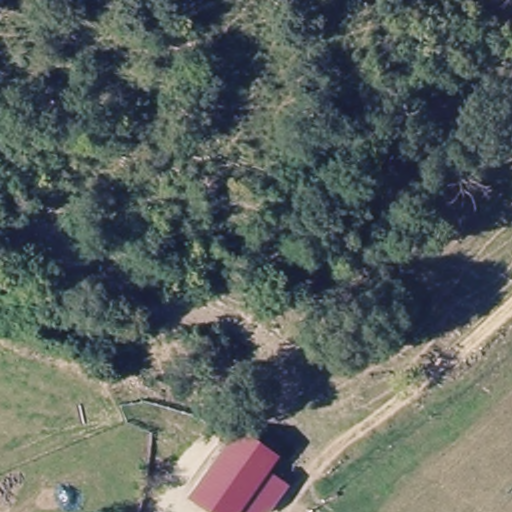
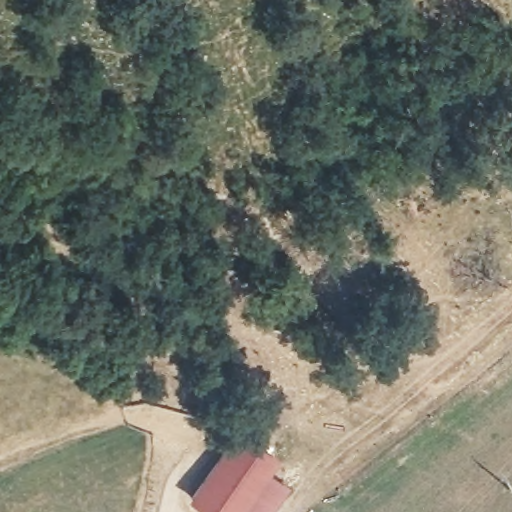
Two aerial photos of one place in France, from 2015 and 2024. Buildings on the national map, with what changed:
unchanged [(264,512),(236,512),(235,512),(208,512),(190,499),(235,433),(271,459),(260,475),(282,493),(271,508),(264,512)]

